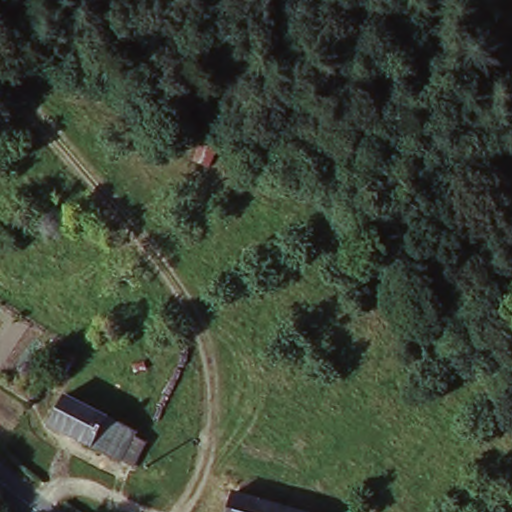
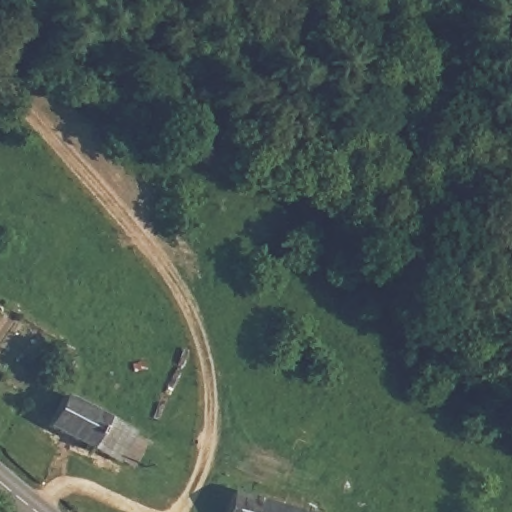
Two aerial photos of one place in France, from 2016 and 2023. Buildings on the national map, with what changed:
unchanged [(216,150),(209,168),(193,162),(201,142),(216,150)]
unchanged [(61,356),(80,368),(63,396),(45,387),(61,356)]
unchanged [(122,468),(51,431),(71,399),(138,435),(151,443),(137,470),(125,463),(122,468)]
unchanged [(231,497),(249,502),(255,487),(312,503),(310,512),(227,512),(231,497)]

